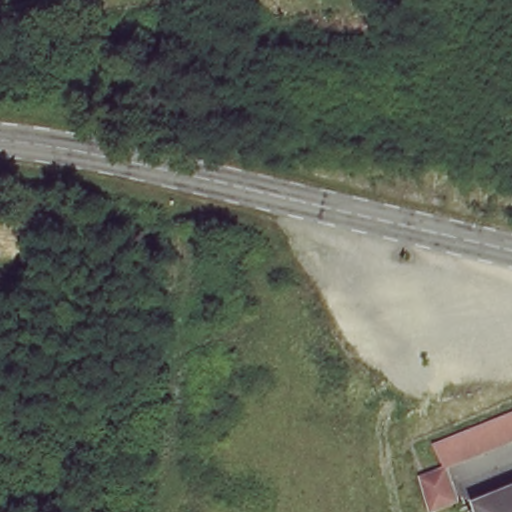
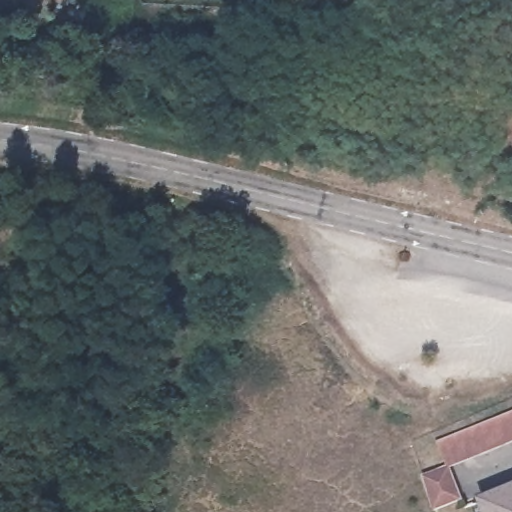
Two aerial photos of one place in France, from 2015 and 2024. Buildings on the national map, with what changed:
unchanged [(447,464),(459,497),(432,507),(424,481),(421,473),(445,463),(435,439),(512,409),(512,439),(447,464)]
unchanged [(484,512),(478,498),(512,484),(512,512),(484,512)]

